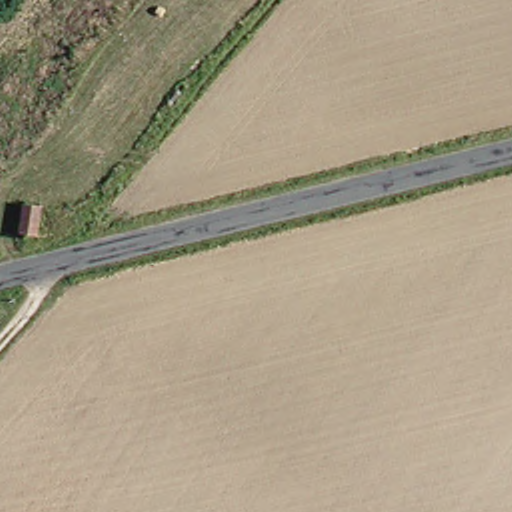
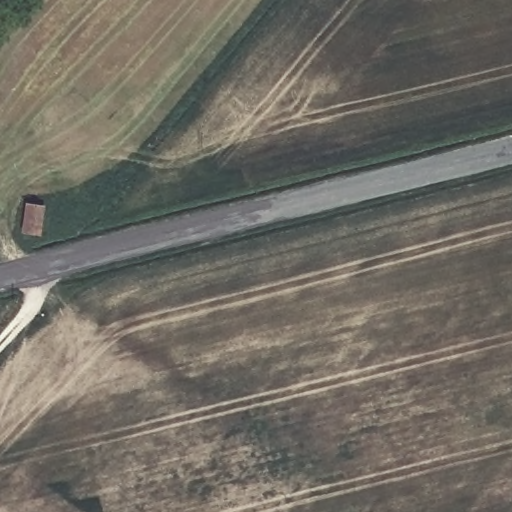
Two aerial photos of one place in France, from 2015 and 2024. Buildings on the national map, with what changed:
unchanged [(43,205),(40,237),(17,234),(21,202),(43,205)]

